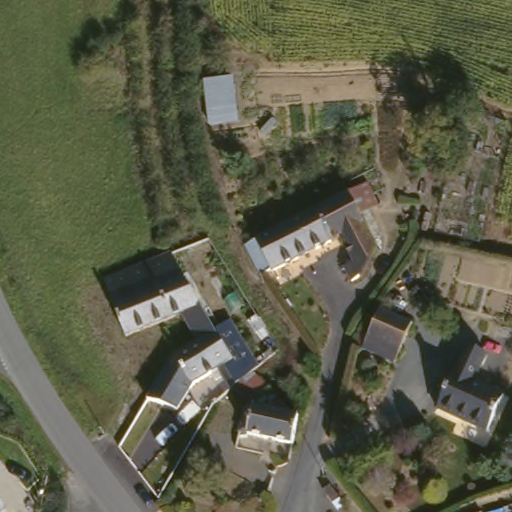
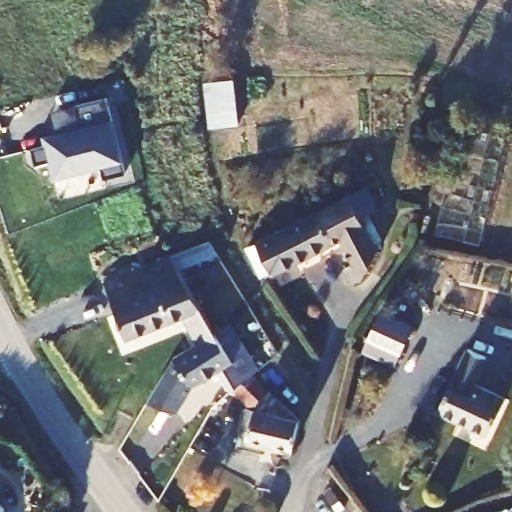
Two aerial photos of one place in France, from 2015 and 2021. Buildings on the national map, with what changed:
unchanged [(203,81),(236,80),(241,131),(209,133),(203,81)]
new [(51,115),(75,109),(108,101),(125,169),(103,175),(101,165),(54,177),(51,162),(36,166),(32,150),(52,145),(49,136),(56,135),(51,115)]
unchanged [(371,272),(360,277),(353,266),(363,261),(350,236),(273,278),(256,247),(352,194),(370,184),(381,206),(363,215),(369,226),(380,248),(371,272)]
unchanged [(183,319),(129,342),(105,287),(172,260),(185,279),(198,299),(220,332),(200,346),(183,319)]
unchanged [(411,330),(391,366),(362,350),(382,313),(411,330)]
unchanged [(224,371),(192,390),(180,415),(152,407),(173,366),(175,361),(200,346),(220,332),(239,360),(242,358),(258,375),(241,390),(224,371)]
unchanged [(440,410),(459,375),(463,376),(478,351),(493,361),(479,387),(506,404),(486,439),(440,410)]
unchanged [(242,435),(248,411),(250,409),(236,394),(241,390),(258,375),(303,418),(295,448),(242,435)]
unchanged [(8,507),(3,512),(0,512),(0,493),(8,507)]
unchanged [(512,512),(500,512),(512,509),(512,512)]

